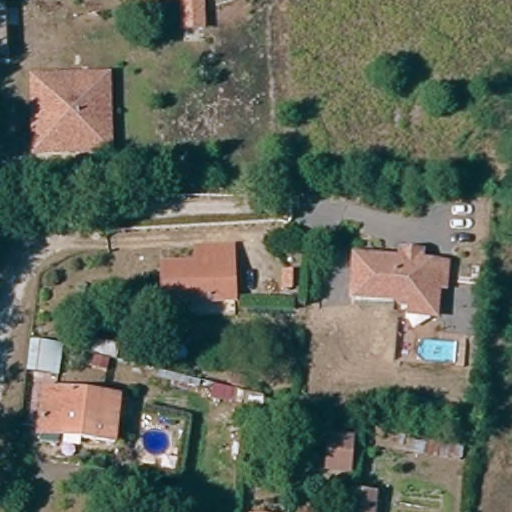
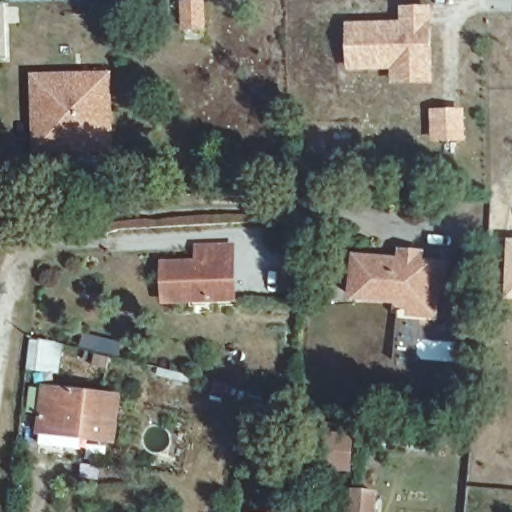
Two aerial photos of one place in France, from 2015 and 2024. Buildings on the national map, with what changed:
unchanged [(177,21),(176,0),(196,0),(197,20),(177,21)]
new [(433,81),(392,84),(391,69),(347,69),(347,23),(400,21),(400,5),(431,6),(433,81)]
unchanged [(0,56),(0,10),(2,56),(0,56)]
unchanged [(109,142),(109,151),(27,155),(26,146),(22,74),(105,70),(109,142)]
new [(461,129),(444,130),(443,103),(461,102),(461,129)]
unchanged [(306,245),(295,262),(268,248),(276,229),(306,245)]
new [(507,238),(512,238),(512,299),(504,299),(507,238)]
unchanged [(161,266),(195,265),(195,250),(207,250),(232,250),(231,301),(223,301),(160,302),(161,266)]
unchanged [(409,322),(408,307),(396,304),(352,300),(355,259),(400,262),(401,250),(421,252),(422,264),(446,266),(445,289),(438,289),(437,297),(436,324),(409,322)]
unchanged [(52,342),(49,367),(26,365),(30,337),(52,342)]
unchanged [(42,422),(45,387),(115,394),(114,442),(81,439),(40,435),(42,422)]
demolished [(317,430),(340,432),(339,464),(316,464),(317,430)]
demolished [(364,487),(364,512),(343,512),(345,486),(364,487)]

